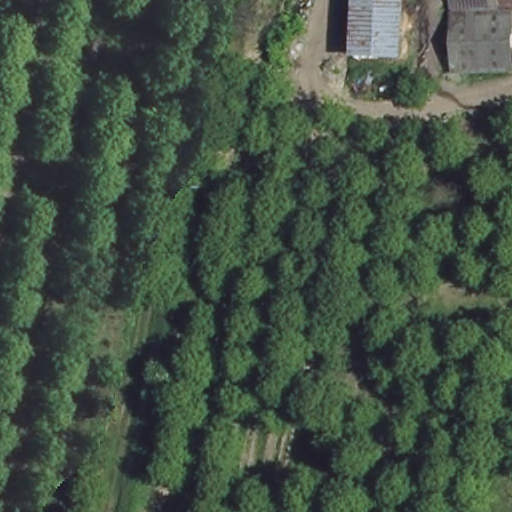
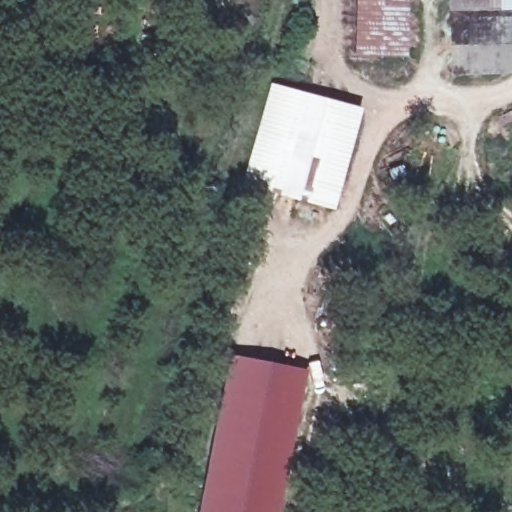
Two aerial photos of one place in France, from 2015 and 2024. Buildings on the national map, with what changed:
unchanged [(364,0),(412,0),(412,48),(364,48),(364,0)]
unchanged [(512,11),(466,11),(466,0),(512,0),(512,11)]
unchanged [(466,11),(512,11),(512,74),(466,74),(466,11)]
new [(360,108),(332,210),(242,184),(270,83),(360,108)]
new [(279,512),(198,512),(227,354),(304,370),(279,512)]

